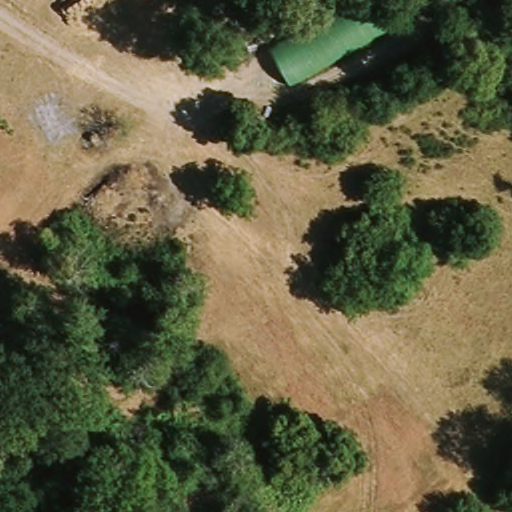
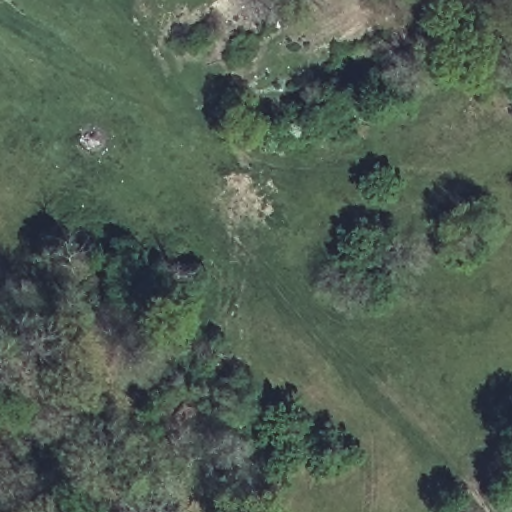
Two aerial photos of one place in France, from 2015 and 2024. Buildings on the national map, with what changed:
demolished [(374,0),(399,0),(412,26),(289,85),(278,50),(374,0)]

